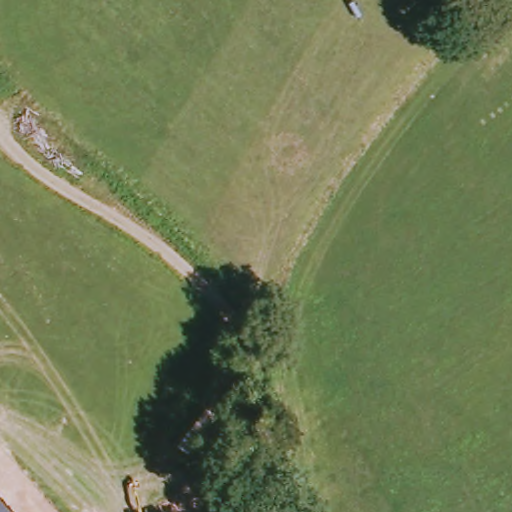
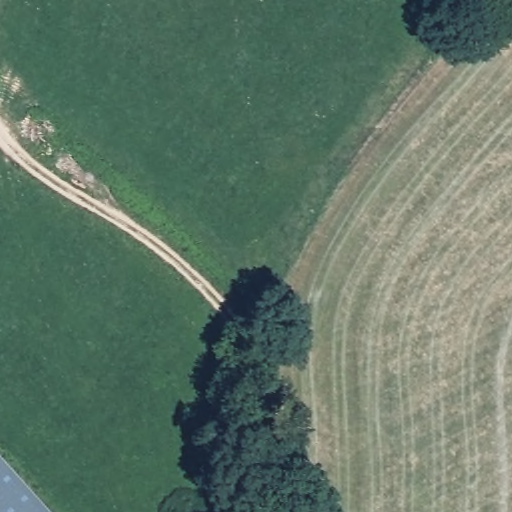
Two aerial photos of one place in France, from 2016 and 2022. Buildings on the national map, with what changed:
new [(46,512),(0,512),(0,461),(46,512)]

